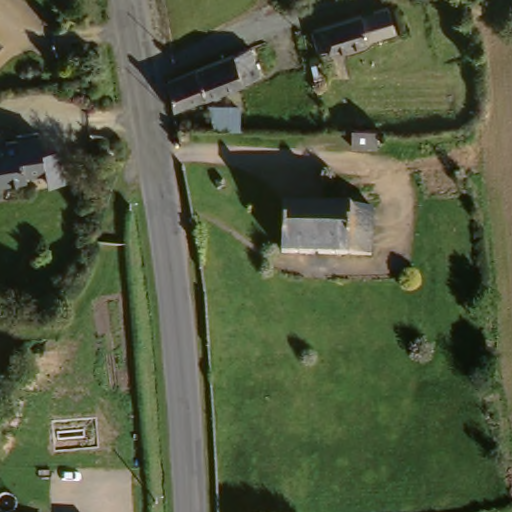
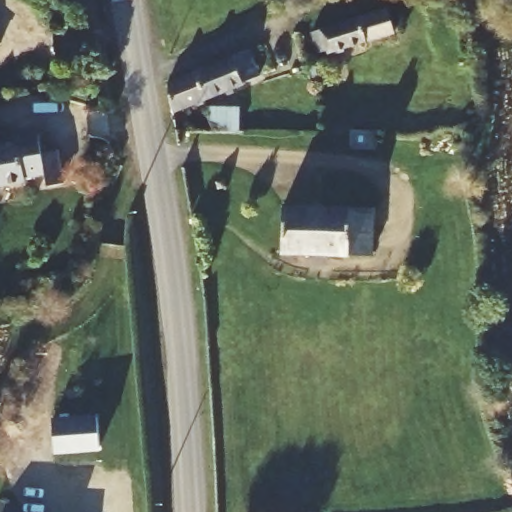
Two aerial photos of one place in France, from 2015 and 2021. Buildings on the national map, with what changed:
unchanged [(394,31),(367,38),(328,51),(321,28),(363,15),(389,12),(394,31)]
unchanged [(196,69),(249,48),(250,50),(257,47),(259,53),(254,55),(259,71),(244,78),(245,81),(207,96),(175,108),(171,80),(196,69)]
unchanged [(11,137),(33,134),(36,155),(52,152),(57,183),(41,186),(39,175),(18,178),(19,181),(0,184),(0,141),(1,144),(12,143),(11,137)]
unchanged [(371,253),(279,251),(280,204),(372,206),(371,253)]
new [(102,447),(56,451),(53,417),(97,413),(102,447)]

